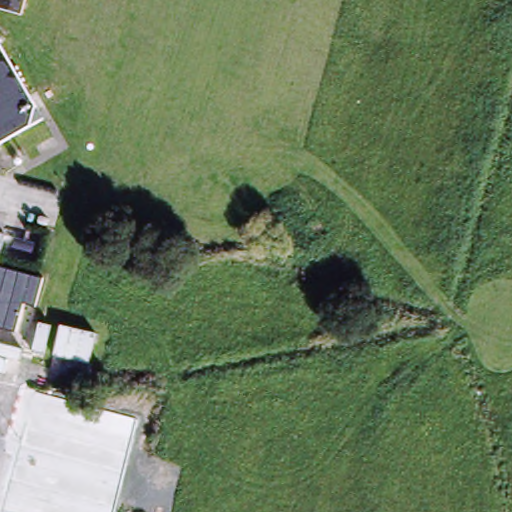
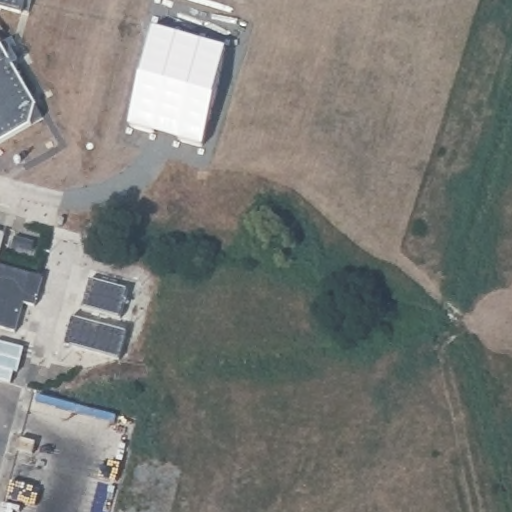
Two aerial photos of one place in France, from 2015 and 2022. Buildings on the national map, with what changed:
unchanged [(0,4),(0,0),(24,0),(22,9),(0,4)]
new [(155,26),(224,38),(200,140),(127,125),(155,26)]
unchanged [(43,117),(0,143),(0,45),(43,117)]

